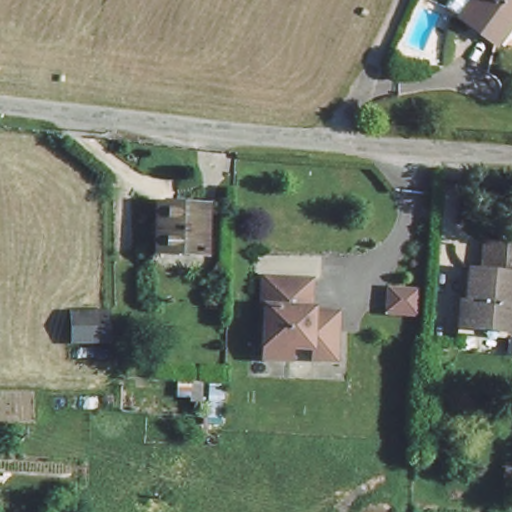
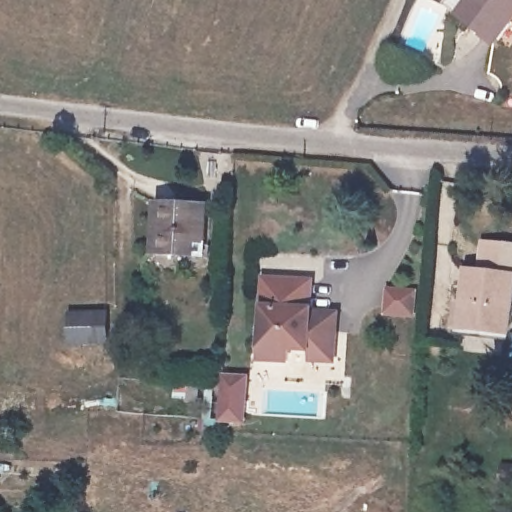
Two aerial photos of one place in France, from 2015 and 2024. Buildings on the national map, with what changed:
unchanged [(512,0),(512,28),(497,46),(454,12),(463,0),(512,0)]
unchanged [(206,202),(206,254),(157,252),(158,199),(206,202)]
unchanged [(472,275),(490,276),(490,245),(512,246),(512,333),(468,329),(472,275)]
unchanged [(316,358),(316,348),(293,346),(291,358),(265,356),(267,307),(265,306),(267,276),(314,279),(313,310),(336,311),(341,311),(341,328),(340,350),(339,360),(316,358)]
unchanged [(106,310),(107,340),(71,342),(70,310),(106,310)]
new [(247,425),(220,423),(222,373),(250,376),(247,425)]

